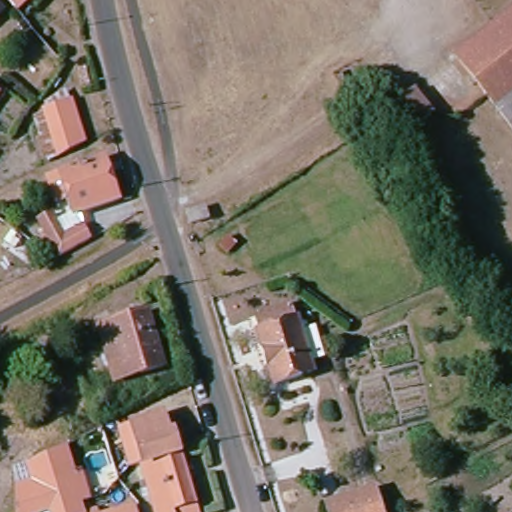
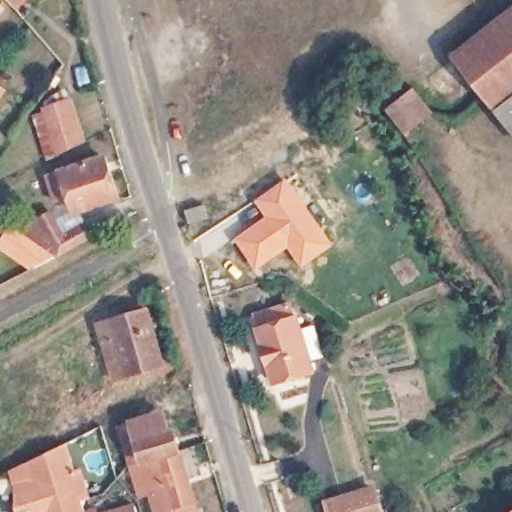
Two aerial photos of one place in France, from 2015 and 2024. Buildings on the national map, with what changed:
unchanged [(0,0),(26,0),(11,13),(0,0)]
unchanged [(494,116),(451,61),(459,55),(512,13),(512,139),(494,116)]
unchanged [(432,113),(407,133),(390,112),(415,92),(432,113)]
unchanged [(46,166),(31,119),(59,110),(73,153),(46,166)]
unchanged [(96,163),(111,204),(67,219),(53,178),(96,163)]
new [(265,216),(254,200),(286,178),(334,244),(302,268),(287,249),(254,269),(234,238),(265,216)]
unchanged [(204,208),(207,220),(192,224),(190,211),(204,208)]
unchanged [(34,231),(29,234),(26,228),(45,218),(59,242),(76,233),(83,244),(66,253),(51,261),(34,231)]
unchanged [(285,328),(290,342),(304,338),(314,369),(299,374),(302,384),(261,396),(243,341),(248,339),(243,326),(278,316),(282,329),(285,328)]
unchanged [(105,390),(89,335),(101,332),(138,320),(154,375),(118,386),(105,390)]
unchanged [(126,465),(115,429),(125,426),(125,423),(158,412),(164,433),(169,431),(175,451),(154,457),(136,462),(126,465)]
unchanged [(29,482),(23,463),(60,445),(69,474),(75,472),(78,479),(85,500),(79,502),(82,512),(47,512),(46,509),(37,512),(12,512),(11,500),(10,488),(29,482)]
unchanged [(175,451),(194,512),(171,512),(154,457),(175,451)]
unchanged [(154,457),(171,512),(151,512),(136,462),(154,457)]
unchanged [(379,512),(325,512),(323,503),(372,489),(379,512)]
unchanged [(133,507),(134,512),(116,512),(133,507)]

